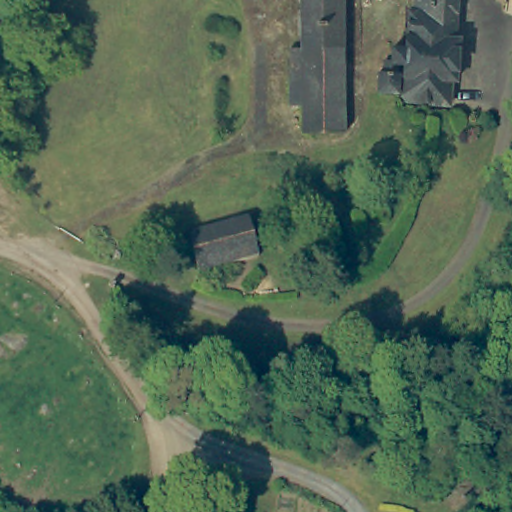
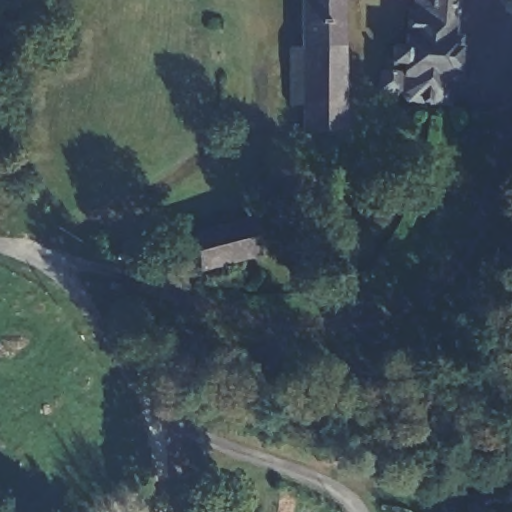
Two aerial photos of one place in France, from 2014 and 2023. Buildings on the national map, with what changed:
unchanged [(342,0),(345,69),(346,99),(349,136),(305,140),(301,97),(289,98),(285,55),(297,54),(291,0),(342,0)]
unchanged [(360,0),(358,70),(345,69),(342,0),(360,0)]
unchanged [(453,35),(447,83),(441,83),(438,106),(412,105),(372,96),(373,81),(382,81),(382,70),(377,70),(377,51),(407,53),(408,20),(415,21),(415,1),(374,0),(445,0),(444,34),(453,35)]
unchanged [(244,214),(260,248),(210,276),(205,276),(190,245),(244,214)]

